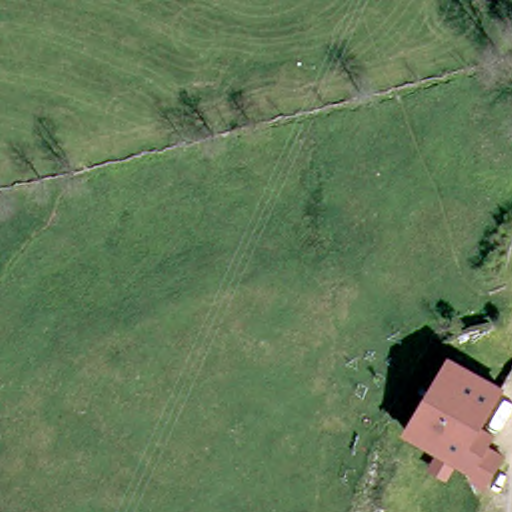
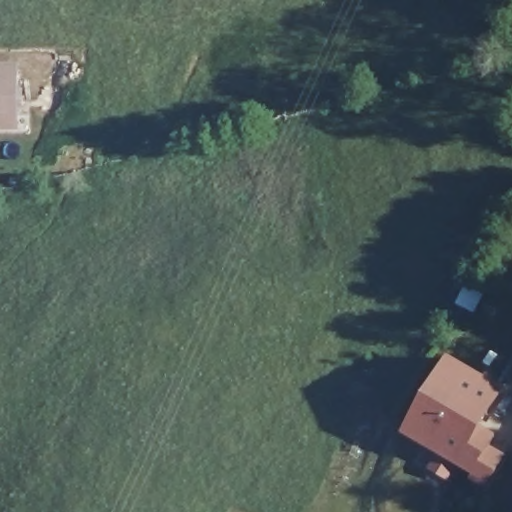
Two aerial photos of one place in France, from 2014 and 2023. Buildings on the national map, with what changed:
new [(19,130),(0,130),(0,63),(19,62),(19,130)]
unchanged [(463,360),(512,390),(512,405),(469,465),(405,433),(463,360)]

